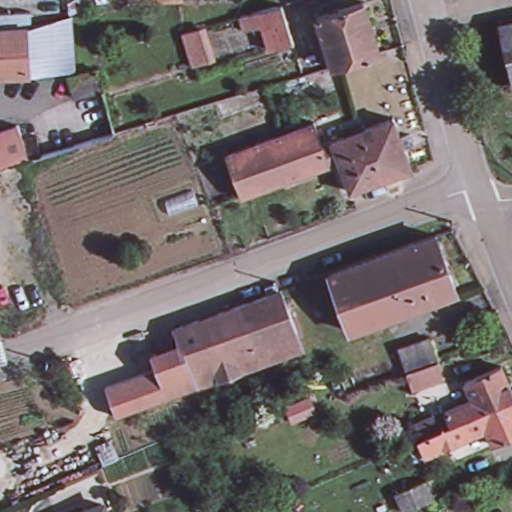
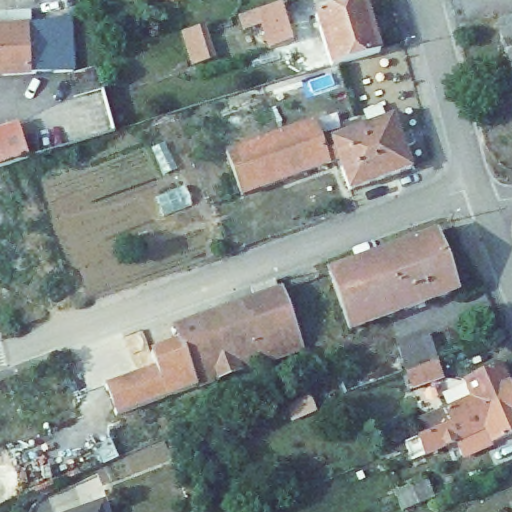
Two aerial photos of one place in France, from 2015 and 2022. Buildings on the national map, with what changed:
unchanged [(338,63),(322,12),(362,0),(371,0),(385,49),(342,62),(338,63)]
unchanged [(261,27),(245,31),(241,17),(281,5),(293,44),(270,51),(261,27)]
unchanged [(73,68),(30,72),(26,24),(69,11),(70,11),(73,68)]
unchanged [(499,17),(512,15),(512,80),(499,17)]
unchanged [(30,72),(0,74),(0,26),(26,24),(30,72)]
unchanged [(209,64),(192,68),(182,35),(200,29),(209,64)]
unchanged [(226,116),(220,99),(338,63),(342,62),(348,82),(315,94),(312,89),(226,116)]
unchanged [(103,86),(73,93),(68,72),(73,71),(96,64),(103,86)]
unchanged [(345,130),(361,124),(364,131),(394,121),(400,140),(410,137),(414,149),(405,152),(411,172),(348,195),(337,165),(330,142),(346,137),(345,130)]
unchanged [(241,197),(227,155),(313,125),(320,146),(330,142),(337,165),(241,197)]
unchanged [(0,131),(15,126),(27,162),(0,170),(0,131)]
unchanged [(459,291),(353,327),(332,272),(439,235),(459,291)]
unchanged [(180,340),(175,325),(281,286),(303,346),(196,383),(180,340)]
unchanged [(112,413),(101,384),(157,365),(151,351),(180,340),(196,383),(112,413)]
unchanged [(410,381),(401,356),(432,345),(441,369),(410,381)]
unchanged [(452,423),(446,407),(473,396),(466,378),(503,363),(512,383),(512,397),(481,412),(452,423)]
unchanged [(512,397),(512,435),(493,443),(488,430),(427,456),(419,437),(452,423),(481,412),(512,397)]
unchanged [(436,501),(406,512),(402,512),(400,507),(393,493),(426,480),(433,493),(436,501)]
unchanged [(103,512),(87,512),(101,507),(103,512)]

